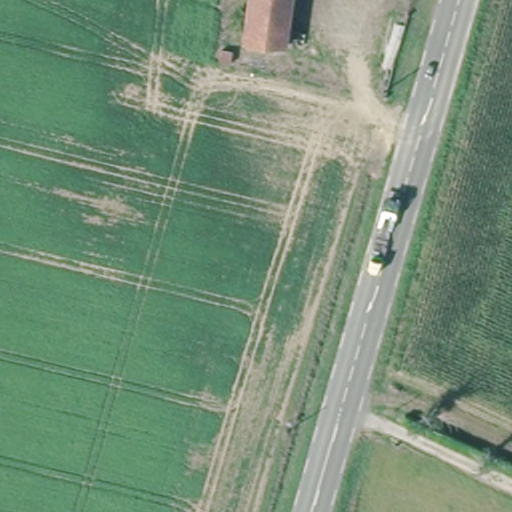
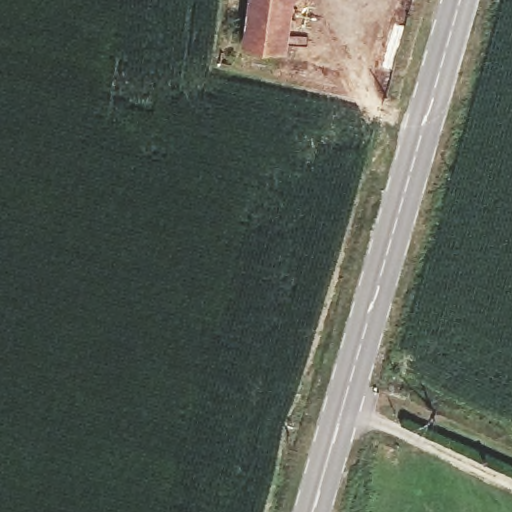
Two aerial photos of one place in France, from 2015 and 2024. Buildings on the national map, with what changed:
unchanged [(243,33),(247,0),(293,0),(288,38),(243,33)]
unchanged [(221,61),(222,50),(234,52),(232,64),(221,61)]

